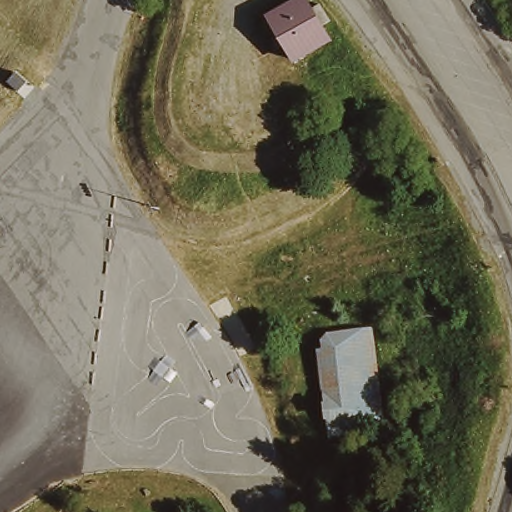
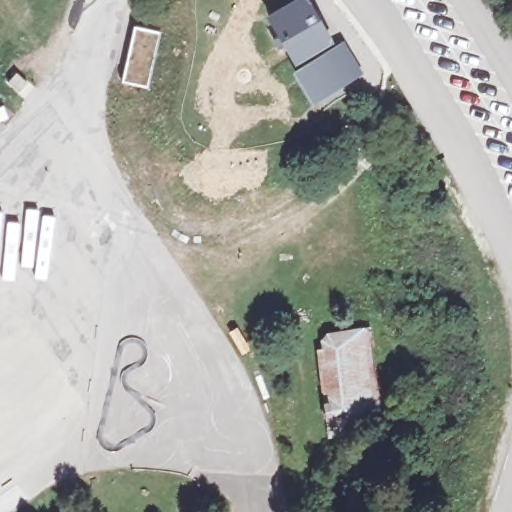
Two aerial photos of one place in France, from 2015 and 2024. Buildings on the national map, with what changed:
unchanged [(301,0),(307,12),(317,7),(326,23),(317,29),(325,42),(290,62),(265,18),(298,0),(301,0)]
new [(135,26),(161,32),(148,88),(121,82),(135,26)]
new [(344,39),(364,73),(310,104),(291,71),(344,39)]
unchanged [(370,328),(381,430),(326,436),(315,334),(370,328)]

